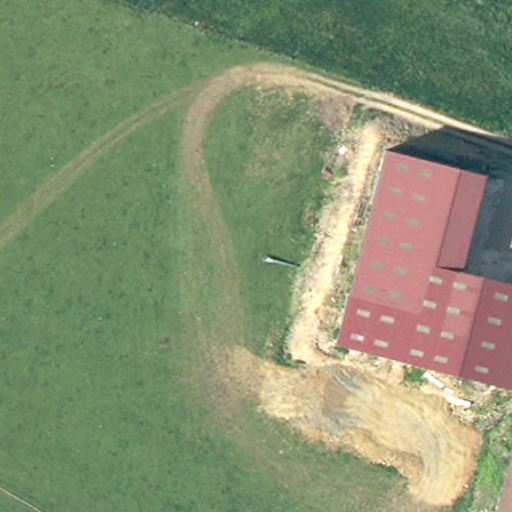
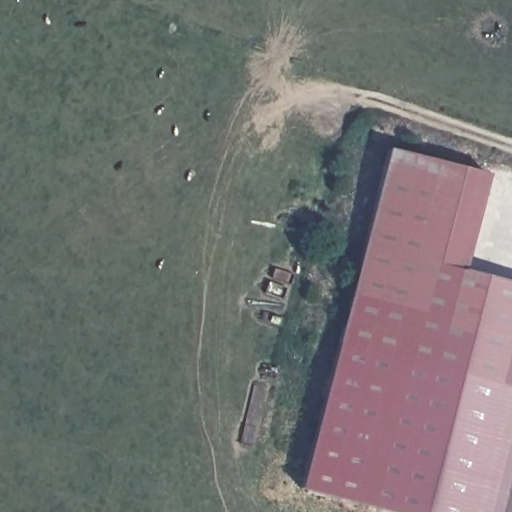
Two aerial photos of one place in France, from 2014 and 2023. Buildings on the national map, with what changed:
unchanged [(385,153),(486,180),(446,322),(349,300),(385,153)]
unchanged [(512,284),(512,390),(336,344),(349,300),(446,322),(459,272),(512,284)]
new [(512,390),(512,446),(495,512),(389,512),(298,489),(336,344),(512,390)]
unchanged [(494,512),(512,446),(512,512),(494,512)]

